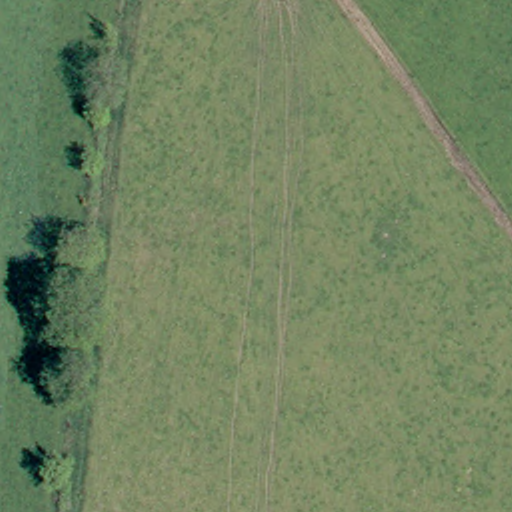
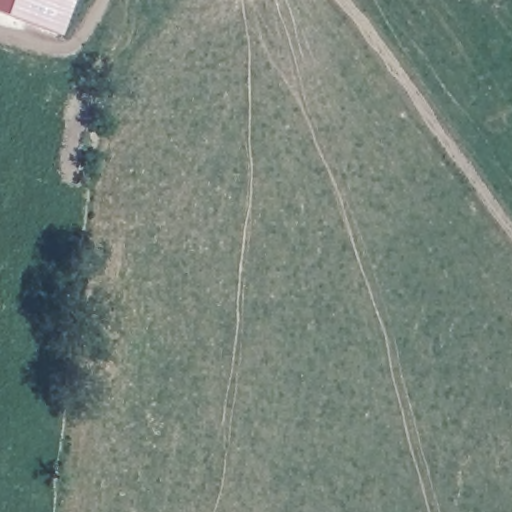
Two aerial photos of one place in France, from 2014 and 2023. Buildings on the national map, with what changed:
new [(60,35),(0,12),(0,0),(72,0),(60,35)]

